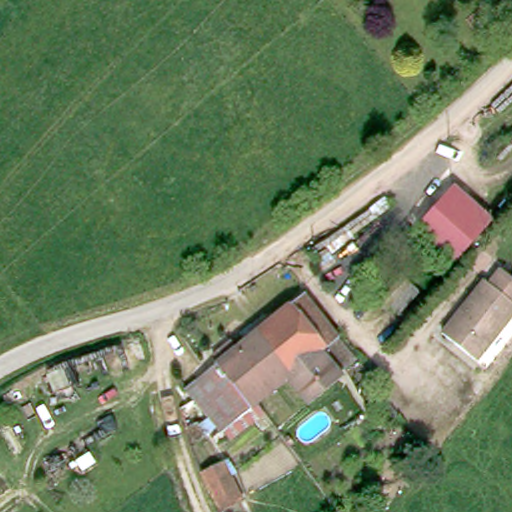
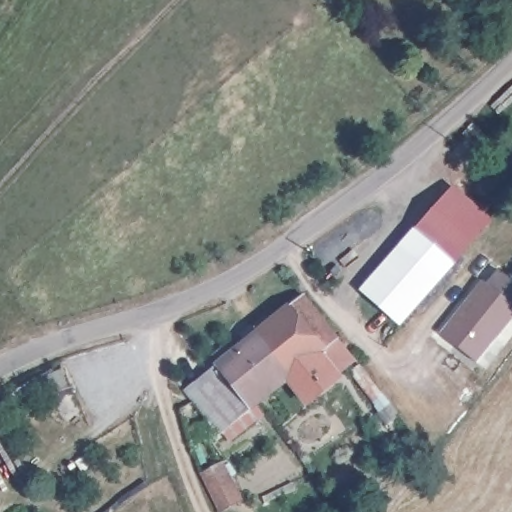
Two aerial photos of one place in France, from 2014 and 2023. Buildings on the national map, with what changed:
unchanged [(493,222),(451,266),(413,229),(454,185),(493,222)]
demolished [(379,219),(388,233),(371,247),(361,234),(379,219)]
new [(451,266),(401,327),(359,289),(413,229),(451,266)]
unchanged [(473,364),(444,335),(489,286),(494,289),(509,274),(512,277),(512,319),(473,364)]
unchanged [(219,364),(246,344),(239,334),(258,322),(264,330),(268,327),(306,297),(338,340),(344,348),(348,357),(350,366),(328,383),(331,388),(311,404),(292,378),(287,382),(251,409),(219,364)]
demolished [(131,339),(135,360),(109,367),(113,381),(89,388),(85,371),(70,378),(66,357),(131,339)]
unchanged [(186,417),(173,399),(219,364),(251,409),(219,435),(211,441),(192,413),(186,417)]

